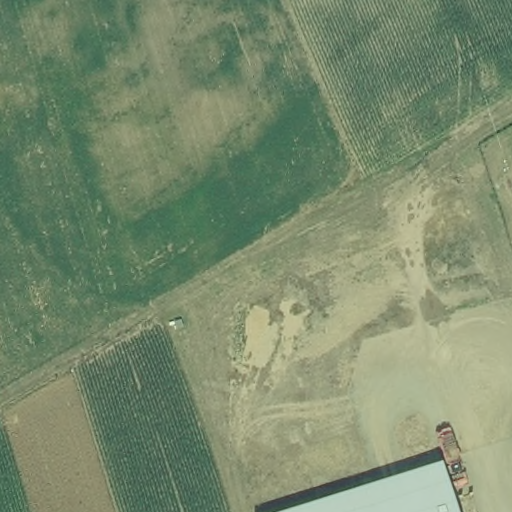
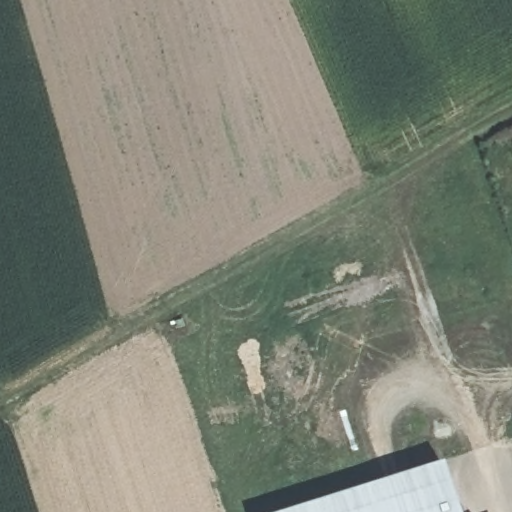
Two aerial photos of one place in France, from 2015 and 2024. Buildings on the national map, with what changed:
unchanged [(443,466),(458,512),(297,512),(346,496),(443,466)]

